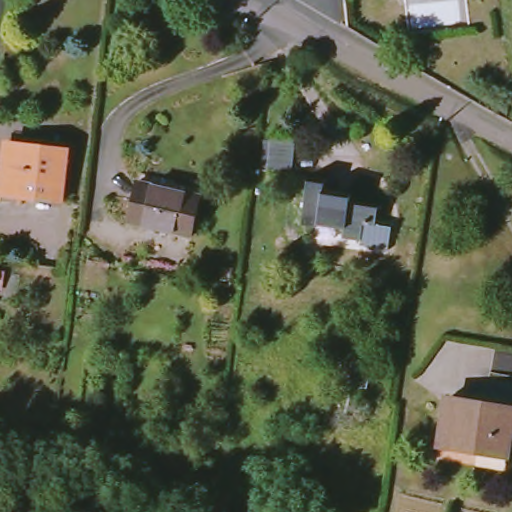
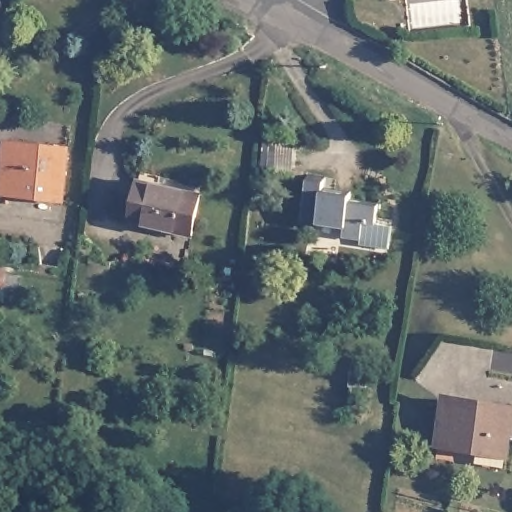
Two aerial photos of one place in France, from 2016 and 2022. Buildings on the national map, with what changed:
unchanged [(66,149),(60,201),(0,194),(0,184),(5,141),(66,149)]
unchanged [(197,194),(188,236),(127,222),(137,180),(197,194)]
unchanged [(317,183),(316,195),(343,198),(343,205),(370,209),(368,226),(357,224),(355,240),(337,237),(337,231),(311,227),(311,232),(294,229),(299,180),(317,183)]
unchanged [(512,424),(506,455),(436,444),(443,398),(512,409),(512,424)]

